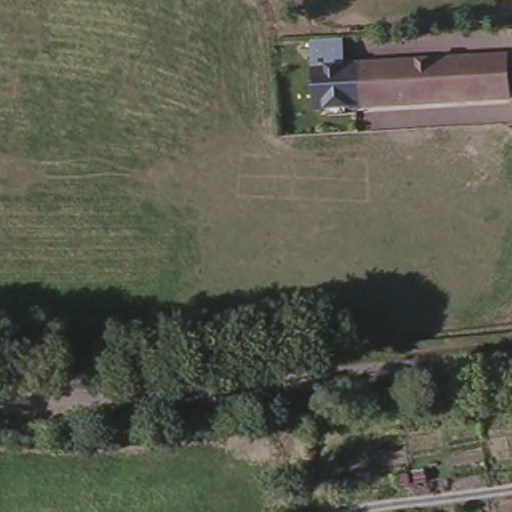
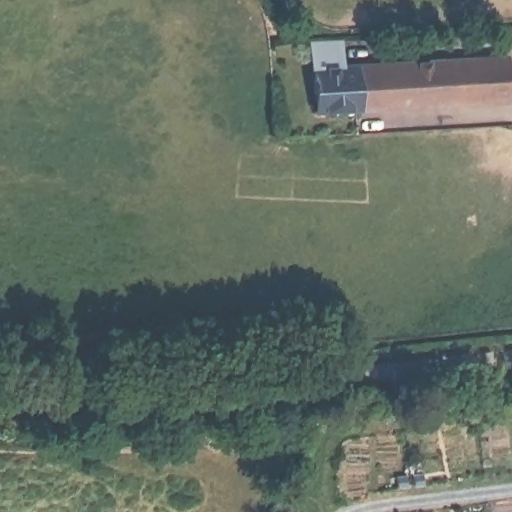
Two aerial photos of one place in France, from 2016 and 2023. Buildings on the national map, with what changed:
unchanged [(505,98),(313,106),(310,55),(326,55),(326,64),(503,56),(505,98)]

